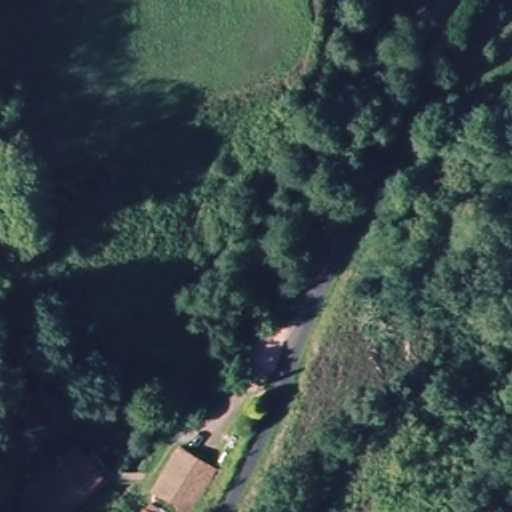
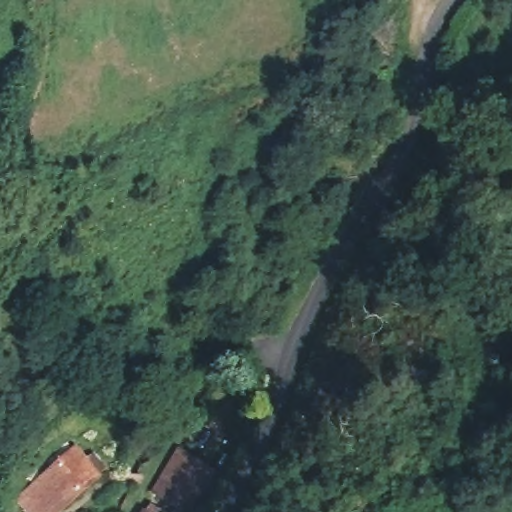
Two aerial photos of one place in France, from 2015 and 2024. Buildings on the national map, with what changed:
unchanged [(18,502),(36,486),(30,477),(71,442),(79,451),(102,478),(64,512),(26,512),(18,502)]
unchanged [(151,489),(175,447),(216,467),(191,512),(144,512),(156,493),(151,489)]

